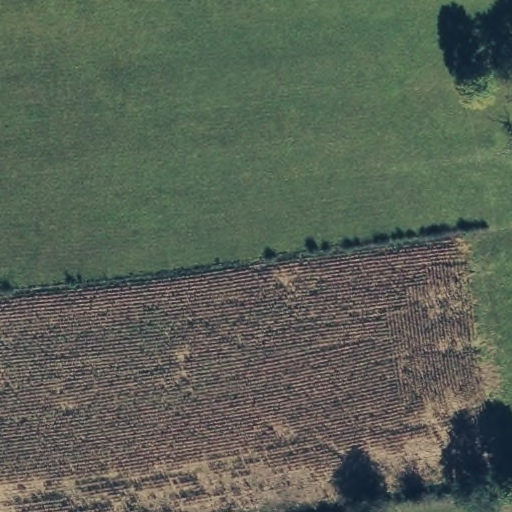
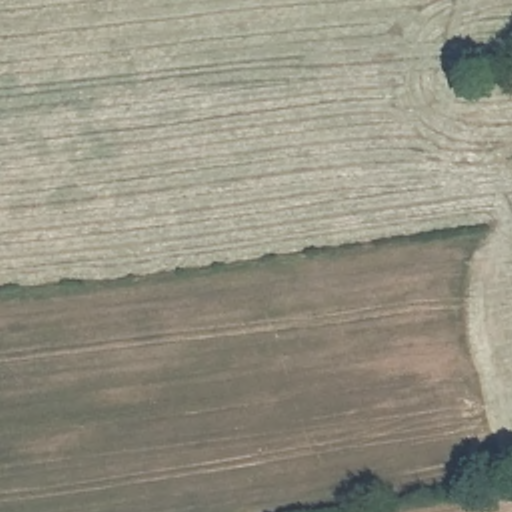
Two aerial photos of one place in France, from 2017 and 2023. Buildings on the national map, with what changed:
[]

